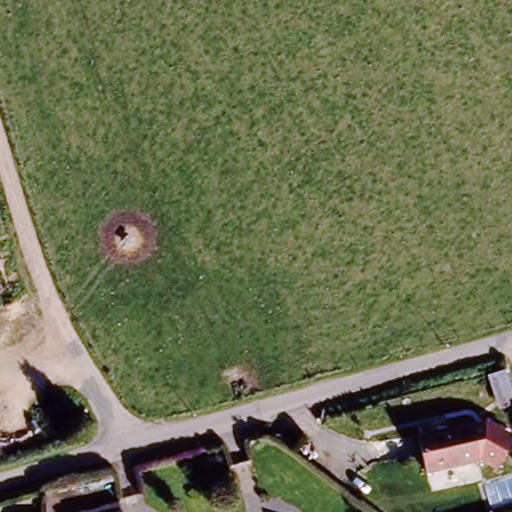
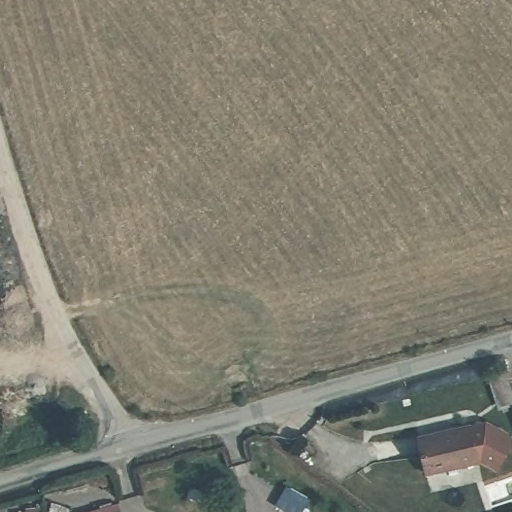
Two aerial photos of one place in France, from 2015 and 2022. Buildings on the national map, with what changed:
unchanged [(417,437),(468,425),(476,461),(426,472),(417,437)]
unchanged [(115,512),(120,511),(120,512),(115,512)]

